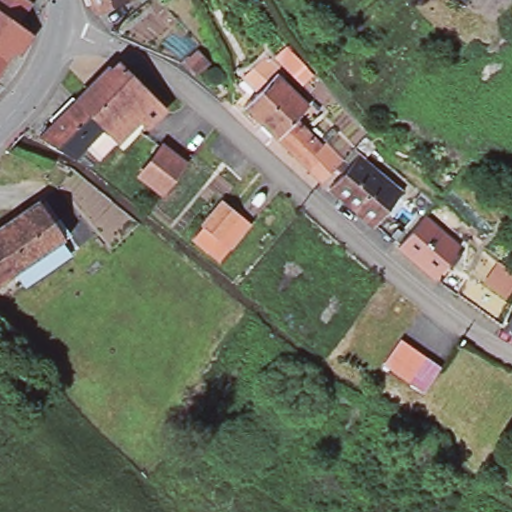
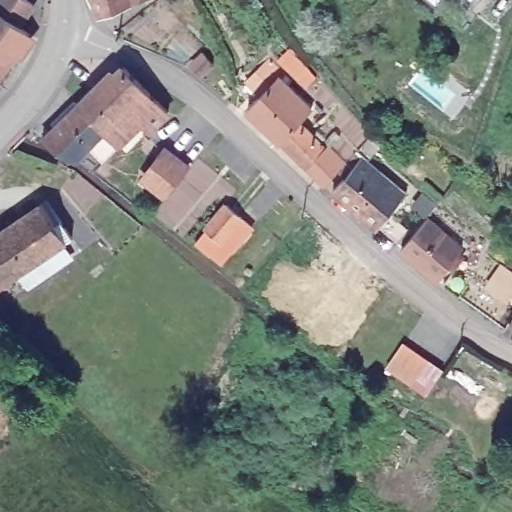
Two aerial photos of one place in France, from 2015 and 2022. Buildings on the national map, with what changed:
unchanged [(31,0),(36,4),(22,25),(32,32),(8,67),(0,62),(0,0),(31,0)]
unchanged [(96,20),(90,0),(146,0),(147,1),(129,8),(96,20)]
unchanged [(189,64),(200,55),(210,65),(199,75),(189,64)]
unchanged [(8,67),(0,79),(0,62),(8,67)]
unchanged [(295,77),(306,68),(314,76),(303,86),(295,77)]
unchanged [(78,164),(45,144),(81,108),(113,76),(117,81),(125,74),(127,71),(153,100),(171,117),(154,134),(144,124),(121,148),(122,149),(105,166),(95,156),(91,151),(78,164)]
unchanged [(245,114),(276,81),(310,112),(297,126),(278,145),(245,114)]
unchanged [(190,124),(209,139),(197,155),(177,140),(190,124)]
unchanged [(297,126),(328,159),(311,176),(278,145),(297,126)]
unchanged [(338,172),(344,165),(370,137),(378,151),(363,166),(402,197),(375,230),(330,195),(344,179),(338,172)]
unchanged [(163,150),(186,167),(166,194),(143,175),(163,150)]
unchanged [(45,207),(50,204),(75,241),(70,245),(66,247),(75,260),(29,292),(20,280),(20,278),(0,292),(0,237),(45,207)]
unchanged [(509,211),(512,205),(512,213),(509,211)]
unchanged [(231,258),(220,249),(205,236),(203,235),(225,212),(240,225),(251,235),(231,258)]
unchanged [(426,221),(460,251),(435,282),(399,251),(426,221)]
unchanged [(454,270),(470,281),(457,298),(441,287),(454,270)]
unchanged [(507,327),(512,318),(512,330),(507,327)]
unchanged [(447,369),(426,399),(384,370),(403,343),(447,369)]

